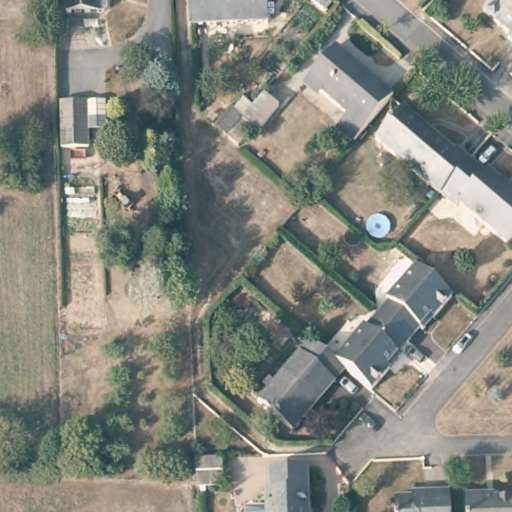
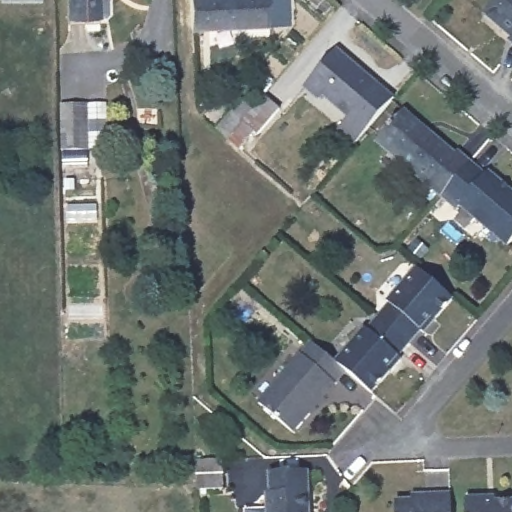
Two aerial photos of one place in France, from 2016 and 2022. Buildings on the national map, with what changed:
unchanged [(64,12),(63,2),(63,0),(84,0),(84,2),(85,12),(64,12)]
unchanged [(272,22),(193,26),(192,0),(271,0),(272,22)]
unchanged [(498,30),(499,23),(483,11),(492,0),(512,0),(512,40),(498,30)]
unchanged [(353,141),(337,129),(348,114),(305,79),(336,44),(393,92),(353,141)]
unchanged [(243,115),(263,91),(280,104),(259,129),(251,128),(239,145),(227,134),(217,126),(231,107),(243,115)]
unchanged [(443,189),(440,193),(375,136),(399,106),(423,128),(427,125),(449,144),(452,142),(469,157),(443,189)]
unchanged [(85,140),(62,140),(60,110),(84,109),(85,140)]
unchanged [(489,174),(492,171),(511,186),(512,185),(512,238),(511,240),(465,202),(461,206),(443,189),(469,157),(489,174)]
unchanged [(415,262),(451,292),(433,312),(428,309),(397,282),(415,262)]
unchanged [(389,303),(384,297),(397,282),(428,309),(404,337),(378,315),(389,303)]
unchanged [(340,365),(332,357),(364,321),(370,325),(378,315),(404,337),(383,361),(387,364),(367,388),(340,365)]
unchanged [(332,357),(340,365),(287,426),(259,404),(312,340),(332,357)]
unchanged [(214,463),(215,479),(193,481),(193,464),(214,463)]
unchanged [(266,512),(265,487),(274,487),(273,468),(311,467),(313,512),(266,512)]
unchanged [(412,494),(412,489),(450,488),(452,512),(397,512),(396,494),(412,494)]
unchanged [(467,512),(466,493),(490,491),(490,495),(512,494),(512,512),(467,512)]

